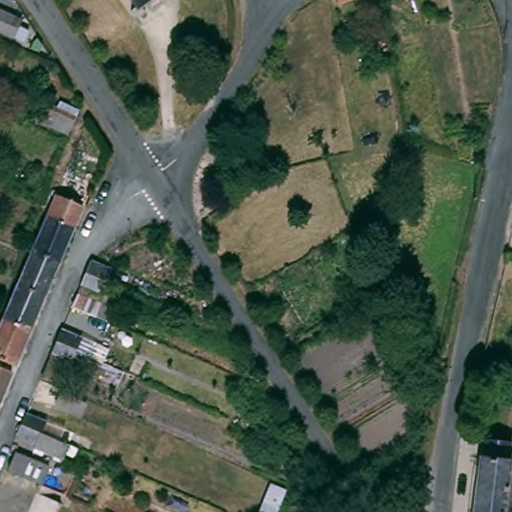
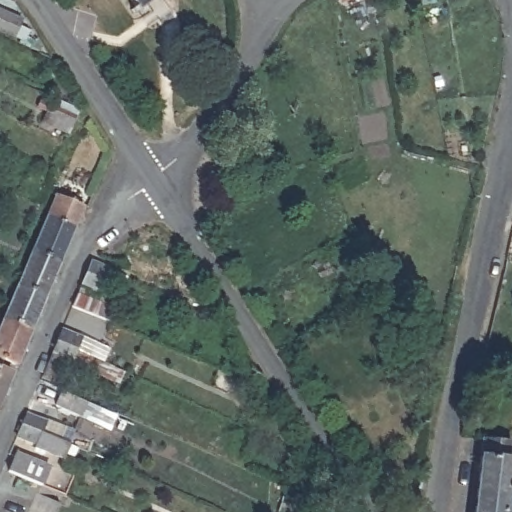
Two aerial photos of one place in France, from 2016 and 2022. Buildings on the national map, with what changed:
unchanged [(142,7),(145,10),(142,13),(139,9),(135,12),(132,8),(135,6),(132,0),(152,0),(142,7)]
unchanged [(339,4),(337,0),(347,0),(339,4)]
unchanged [(29,33),(24,48),(0,37),(0,25),(1,22),(29,33)]
unchanged [(47,137),(50,130),(51,125),(43,122),(46,115),(56,118),(62,120),(69,123),(66,131),(60,129),(55,139),(47,137)]
unchanged [(63,263),(34,251),(56,200),(85,212),(63,263)]
unchanged [(48,298),(20,286),(34,251),(63,263),(48,298)]
unchanged [(81,284),(86,273),(91,262),(110,268),(105,280),(100,292),(81,284)]
unchanged [(5,320),(20,286),(48,298),(33,332),(5,320)]
unchanged [(90,314),(71,307),(77,294),(95,301),(90,314)]
unchanged [(0,358),(0,330),(5,320),(33,332),(18,366),(0,358)]
unchanged [(52,353),(56,343),(62,329),(80,337),(74,350),(70,360),(52,353)]
unchanged [(0,408),(0,368),(15,374),(0,408)]
unchanged [(82,412),(76,424),(60,417),(65,405),(82,412)]
unchanged [(64,458),(37,447),(39,443),(21,435),(26,423),(31,412),(50,419),(45,430),(72,441),(64,458)]
unchanged [(504,512),(473,512),(483,441),(512,444),(512,455),(504,512)]
unchanged [(47,496),(25,487),(14,483),(22,467),(31,471),(54,480),(47,496)]

